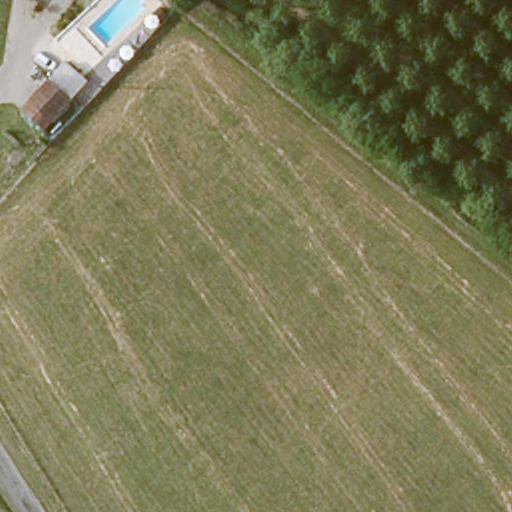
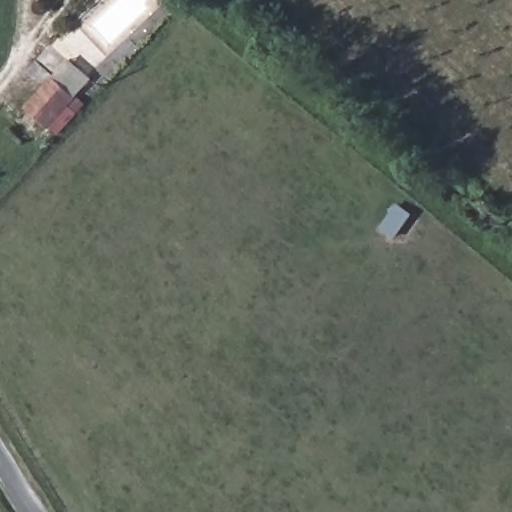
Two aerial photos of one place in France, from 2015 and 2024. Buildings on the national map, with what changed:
unchanged [(30,106),(39,97),(55,77),(78,95),(60,116),(52,126),(30,106)]

